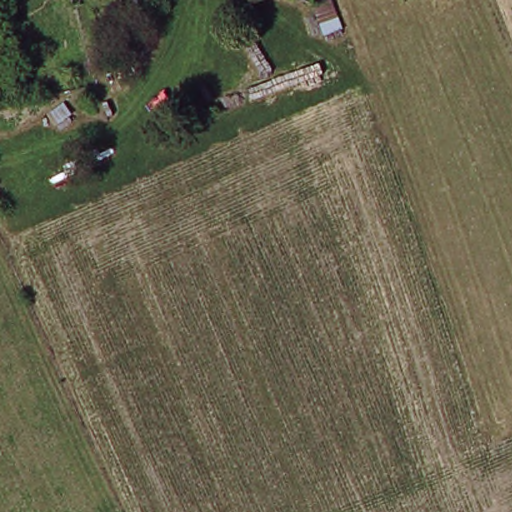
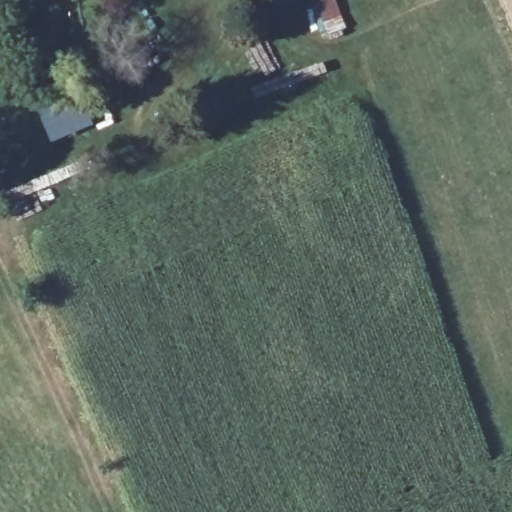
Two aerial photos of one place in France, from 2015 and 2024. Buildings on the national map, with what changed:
new [(50,141),(37,108),(47,104),(49,107),(73,98),(78,110),(85,107),(92,124),(50,141)]

